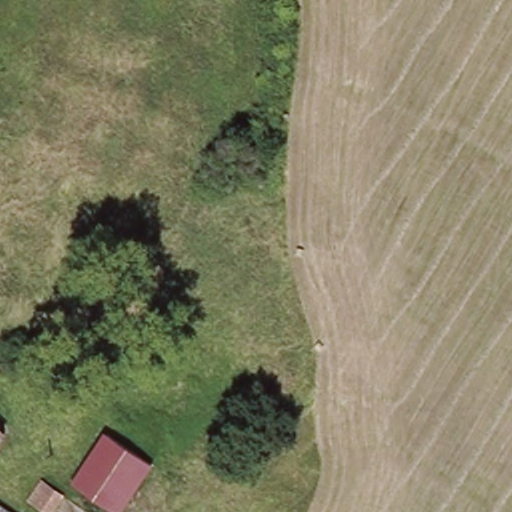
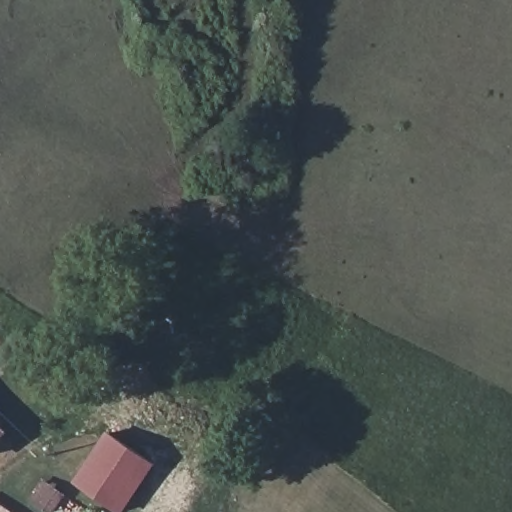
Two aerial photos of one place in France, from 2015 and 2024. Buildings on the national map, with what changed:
unchanged [(7,435),(0,442),(0,427),(7,435)]
unchanged [(125,512),(89,512),(70,498),(115,436),(159,466),(125,512)]
unchanged [(64,495),(54,510),(37,498),(49,483),(64,495)]
unchanged [(28,512),(0,512),(0,496),(2,493),(28,512)]

